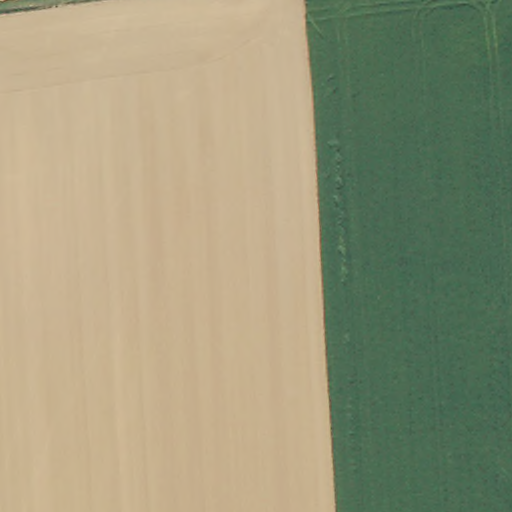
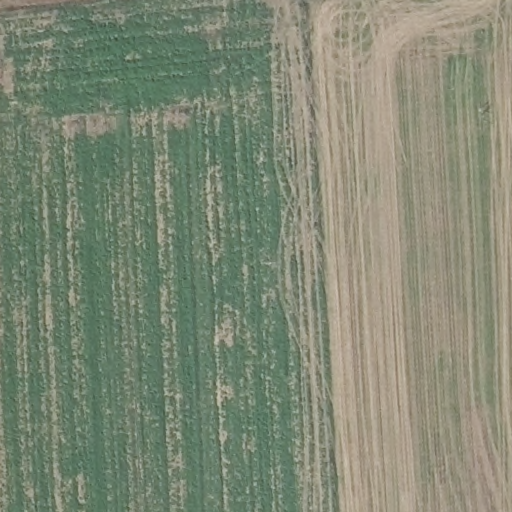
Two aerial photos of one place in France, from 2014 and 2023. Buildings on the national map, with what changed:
[]

